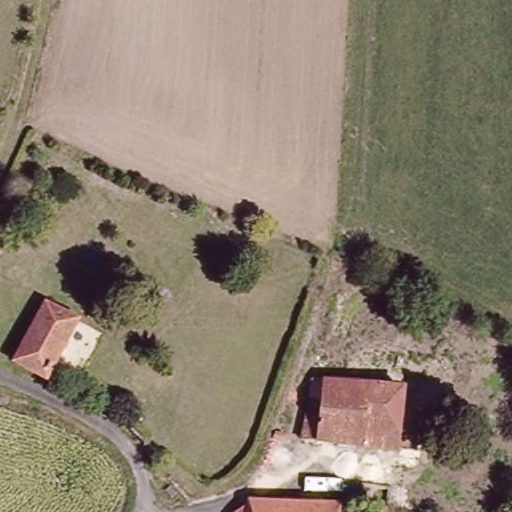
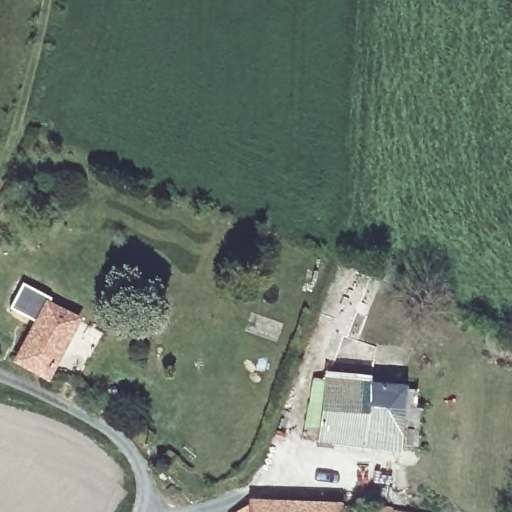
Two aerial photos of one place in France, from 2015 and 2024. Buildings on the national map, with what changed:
unchanged [(49,378),(20,363),(49,307),(79,322),(49,378)]
unchanged [(310,445),(315,386),(406,395),(401,453),(310,445)]
unchanged [(392,512),(385,512),(386,503),(393,504),(392,512)]
unchanged [(245,512),(250,510),(249,512),(245,512)]
unchanged [(249,512),(250,510),(314,512),(249,512)]

